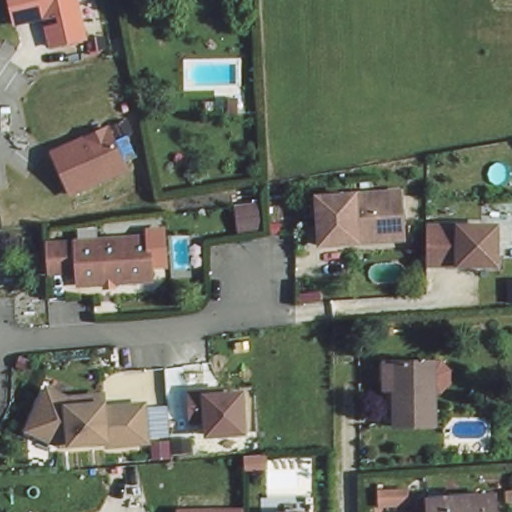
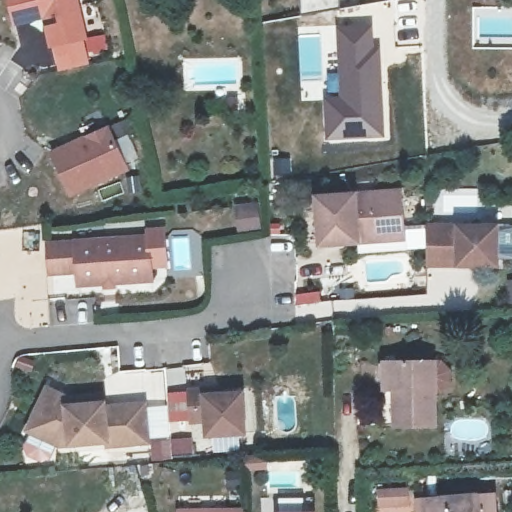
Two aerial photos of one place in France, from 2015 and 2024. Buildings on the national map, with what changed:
unchanged [(53,49),(47,21),(15,27),(9,0),(81,0),(90,40),(53,49)]
new [(302,13),(300,0),(338,0),(339,7),(302,13)]
new [(339,94),(336,24),(371,17),(375,40),(382,76),(385,137),(325,140),(323,95),(339,94)]
unchanged [(215,111),(213,97),(224,97),(226,109),(215,111)]
unchanged [(109,124),(130,170),(70,197),(49,150),(109,124)]
unchanged [(362,242),(324,244),(323,197),(405,194),(407,234),(407,241),(362,242)]
unchanged [(499,222),(500,261),(473,262),(472,255),(462,256),(462,262),(430,263),(430,226),(499,222)]
unchanged [(150,236),(153,278),(81,282),(80,270),(50,272),(49,257),(48,242),(150,236)]
unchanged [(397,426),(395,405),(385,406),(383,367),(432,362),(436,422),(397,426)]
unchanged [(249,431),(213,432),(213,418),(198,419),(196,389),(212,388),(227,388),(227,393),(248,392),(249,431)]
unchanged [(141,407),(144,445),(103,448),(103,443),(57,447),(26,432),(41,399),(45,392),(65,402),(100,398),(101,407),(101,411),(141,407)]
unchanged [(384,491),(414,488),(415,502),(385,505),(384,491)]
unchanged [(423,501),(433,500),(500,495),(502,512),(424,512),(423,501)]
unchanged [(177,511),(195,510),(241,505),(242,512),(177,512),(177,511)]

